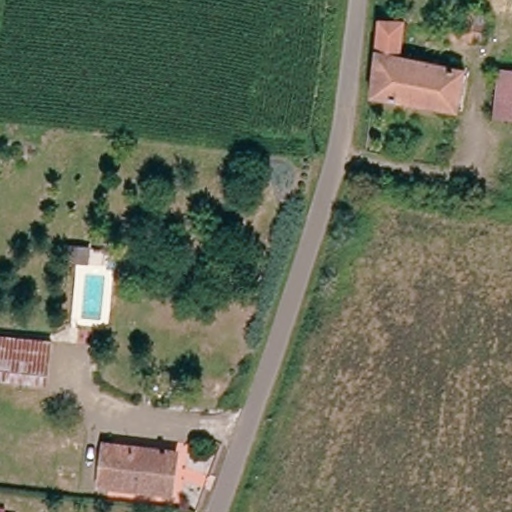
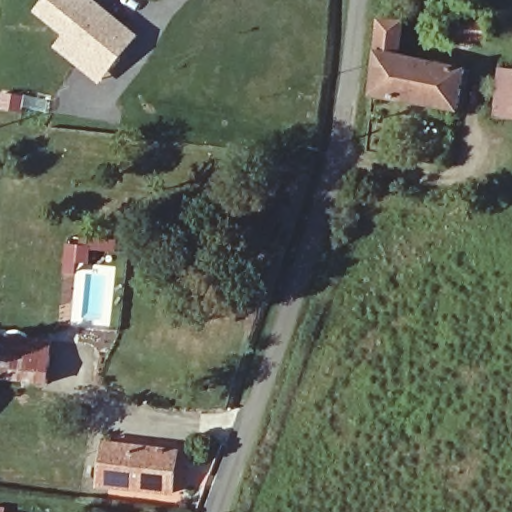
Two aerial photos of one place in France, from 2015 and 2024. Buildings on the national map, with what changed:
new [(139,37),(99,85),(53,48),(64,35),(34,12),(44,0),(93,0),(139,37)]
unchanged [(375,25),(399,27),(395,66),(460,73),(450,109),(367,99),(371,63),(375,25)]
unchanged [(512,107),(511,120),(489,118),(495,68),(512,71),(512,107)]
unchanged [(47,343),(42,384),(0,379),(0,338),(47,343)]
unchanged [(115,448),(162,453),(158,497),(111,492),(115,448)]

